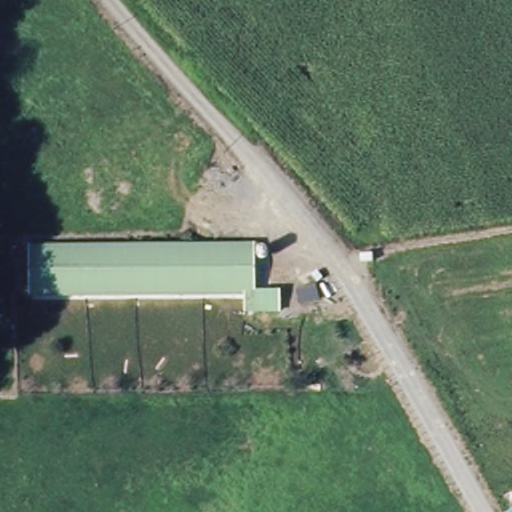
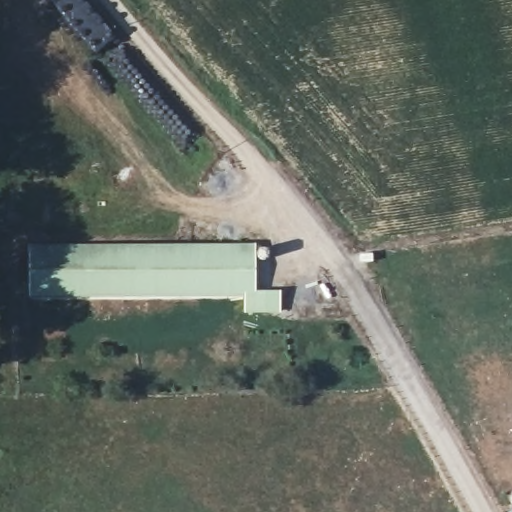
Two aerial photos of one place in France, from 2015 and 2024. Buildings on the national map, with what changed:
unchanged [(252,252),(252,297),(262,296),(262,315),(252,315),(252,298),(26,299),(26,252),(252,252)]
unchanged [(512,500),(512,512),(500,512),(497,508),(512,500)]

